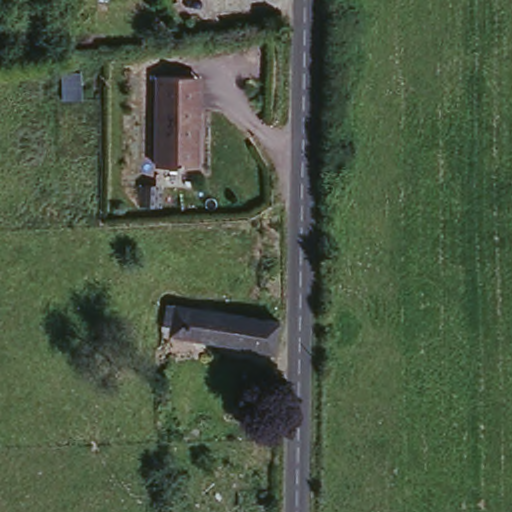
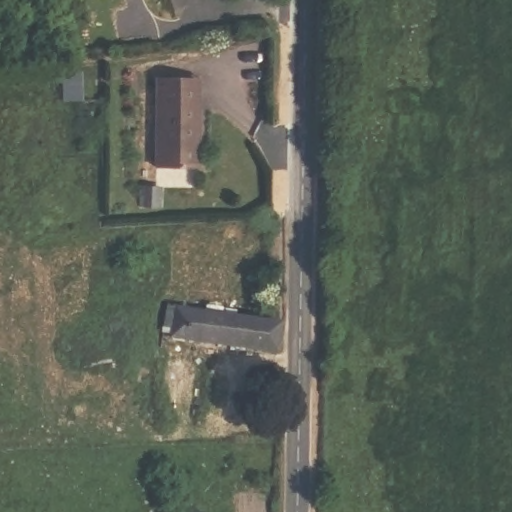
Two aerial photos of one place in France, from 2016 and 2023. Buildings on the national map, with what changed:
unchanged [(198,77),(197,136),(201,136),(200,169),(159,167),(161,76),(198,77)]
unchanged [(162,330),(169,303),(272,326),(272,329),(265,357),(162,330)]

